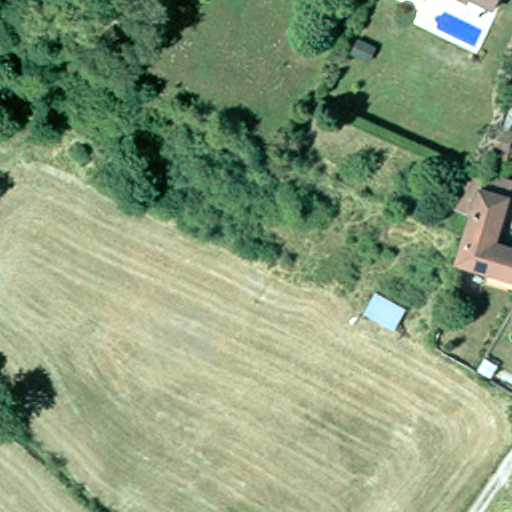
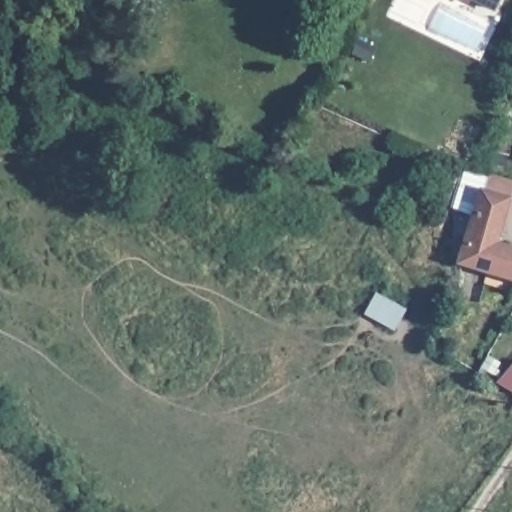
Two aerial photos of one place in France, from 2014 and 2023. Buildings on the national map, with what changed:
unchanged [(488,5),(479,0),(491,0),(488,5)]
unchanged [(465,237),(472,214),(449,206),(462,167),(484,176),(478,194),(505,202),(492,249),(512,255),(512,280),(458,263),(465,237)]
unchanged [(373,287),(407,305),(392,331),(360,312),(373,287)]

